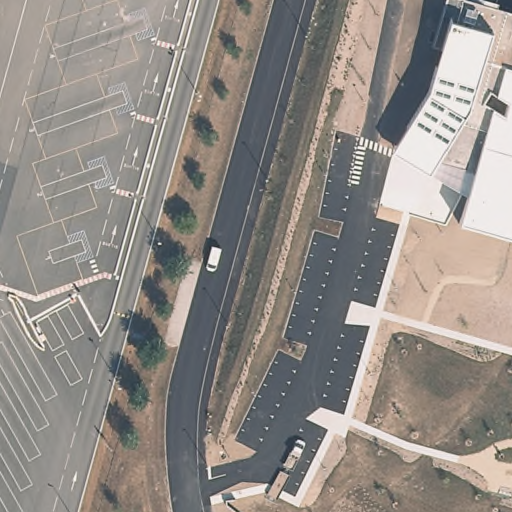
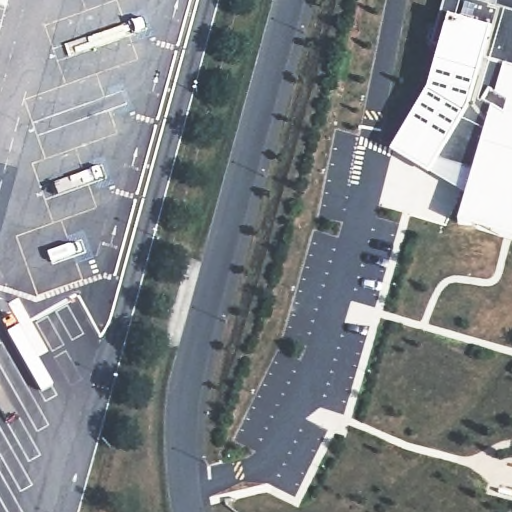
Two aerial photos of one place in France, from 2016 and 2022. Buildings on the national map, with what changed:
unchanged [(425,92),(444,0),(466,0),(512,13),(512,237),(456,220),(463,194),(389,151),(425,92)]

